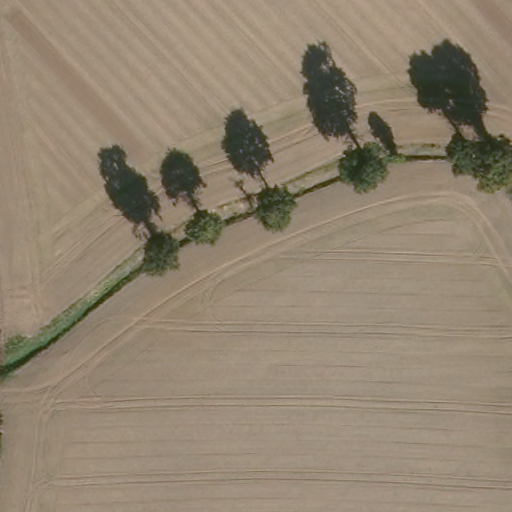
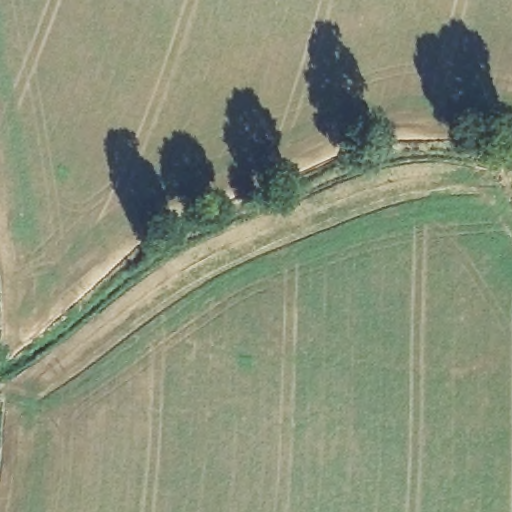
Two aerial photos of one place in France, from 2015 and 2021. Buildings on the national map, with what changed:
[]

